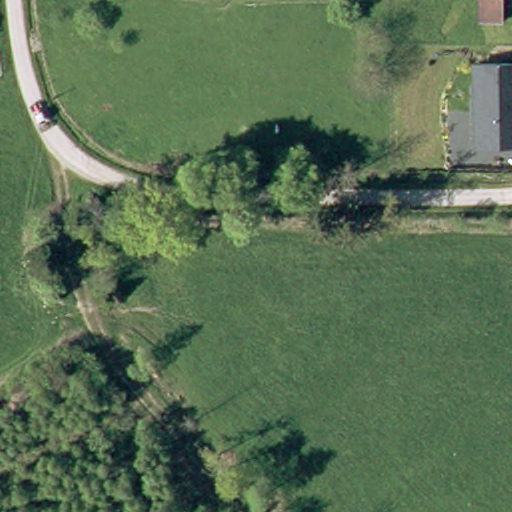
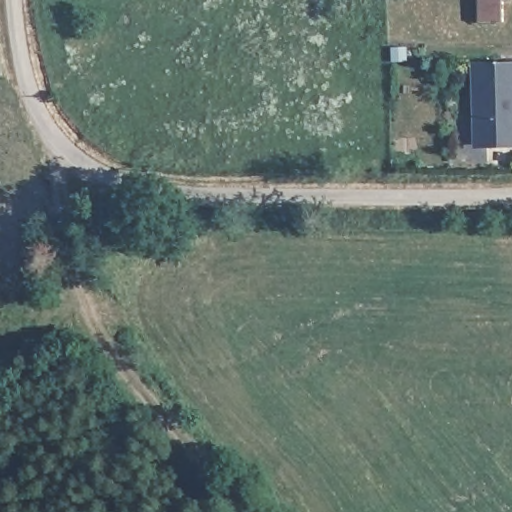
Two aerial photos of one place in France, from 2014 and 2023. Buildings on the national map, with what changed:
unchanged [(479,0),(501,0),(501,3),(501,18),(478,17),(479,0)]
unchanged [(467,162),(465,83),(512,83),(512,171),(476,171),(467,162)]

